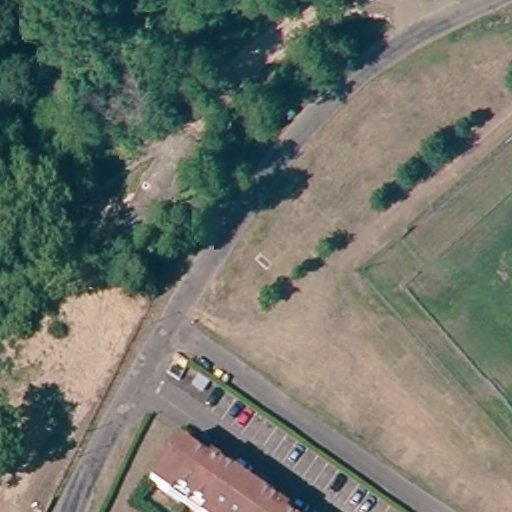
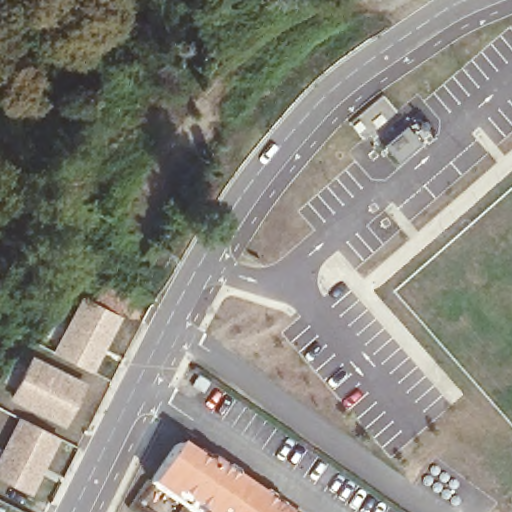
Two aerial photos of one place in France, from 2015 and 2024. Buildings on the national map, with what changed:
new [(404,123),(420,141),(397,161),(381,143),(404,123)]
demolished [(160,186),(176,191),(171,208),(155,204),(160,186)]
new [(93,372),(50,352),(78,293),(123,315),(93,372)]
new [(33,362),(84,387),(65,426),(13,400),(33,362)]
unchanged [(206,385),(201,393),(190,385),(194,378),(206,385)]
new [(19,420),(58,439),(32,493),(0,477),(0,459),(19,420)]
unchanged [(266,502),(271,496),(289,508),(286,512),(196,512),(200,508),(187,499),(172,489),(167,496),(145,481),(173,444),(200,462),(208,452),(224,463),(219,470),(247,489),(266,502)]

